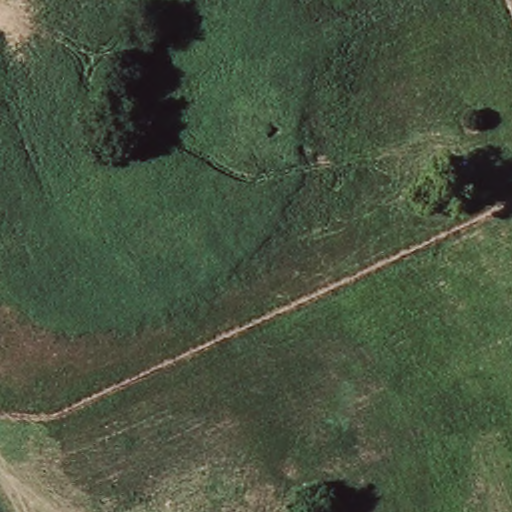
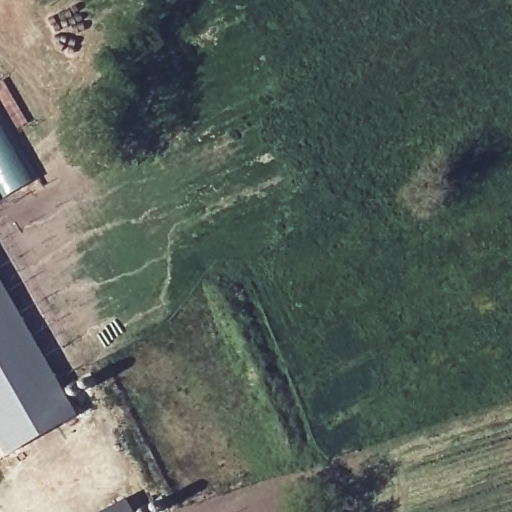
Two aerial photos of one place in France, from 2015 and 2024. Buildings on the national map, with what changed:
new [(78,415),(9,453),(0,438),(0,276),(78,415)]
new [(136,512),(103,512),(128,498),(136,512)]

